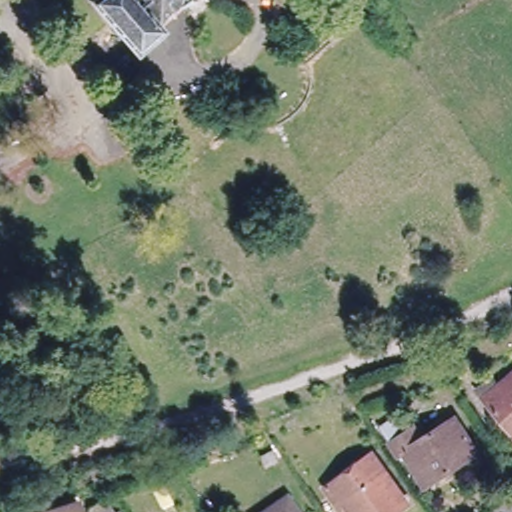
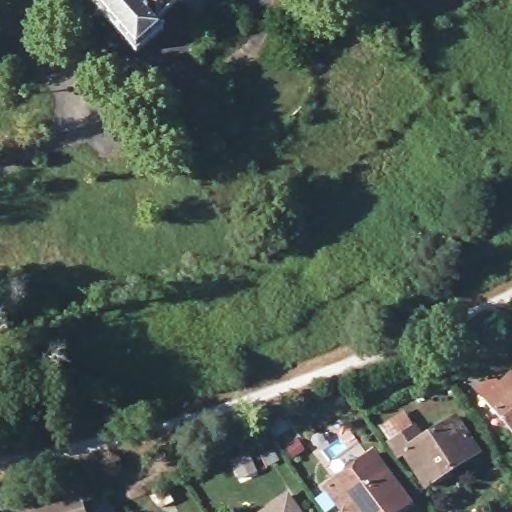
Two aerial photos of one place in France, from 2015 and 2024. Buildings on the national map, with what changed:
unchanged [(184,2),(160,22),(167,30),(139,53),(95,0),(191,0),(187,3),(184,2)]
unchanged [(512,381),(512,416),(494,396),(512,381)]
unchanged [(480,456),(429,490),(408,455),(402,458),(394,446),(418,431),(426,443),(459,422),(480,456)]
unchanged [(411,501),(396,512),(358,512),(354,505),(347,510),(330,486),(376,453),(411,501)]
unchanged [(303,512),(266,512),(291,496),(303,512)]
unchanged [(87,500),(79,506),(81,512),(55,512),(54,510),(53,508),(87,500)]
unchanged [(55,512),(48,512),(54,510),(55,512)]

